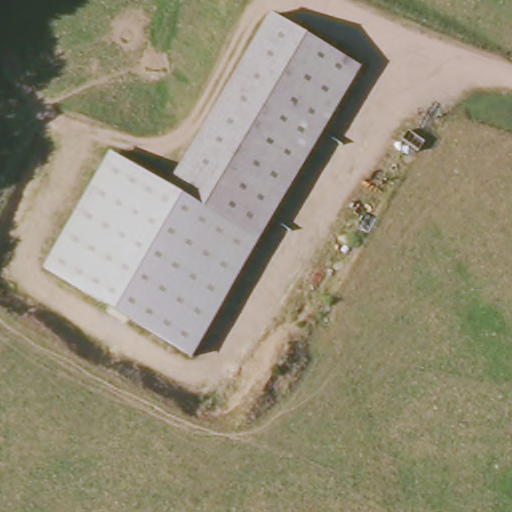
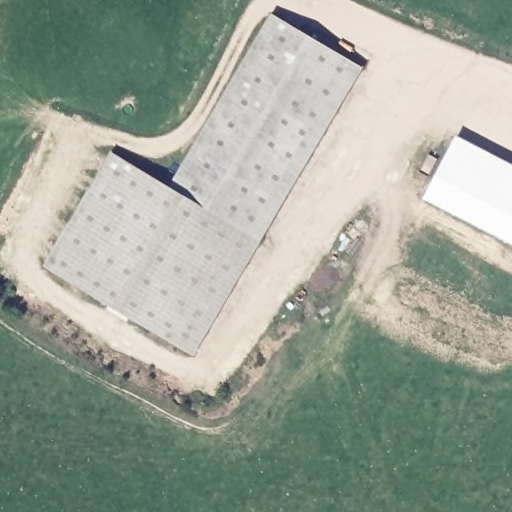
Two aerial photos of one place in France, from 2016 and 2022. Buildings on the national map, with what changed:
unchanged [(360,65),(259,237),(171,186),(272,13),(360,65)]
new [(459,136),(512,164),(512,187),(449,154),(459,136)]
unchanged [(190,354),(42,267),(110,150),(171,186),(259,237),(190,354)]
new [(425,200),(449,154),(512,187),(512,245),(425,200)]

